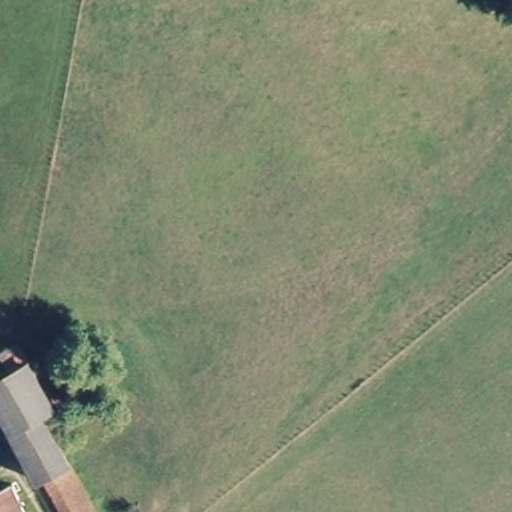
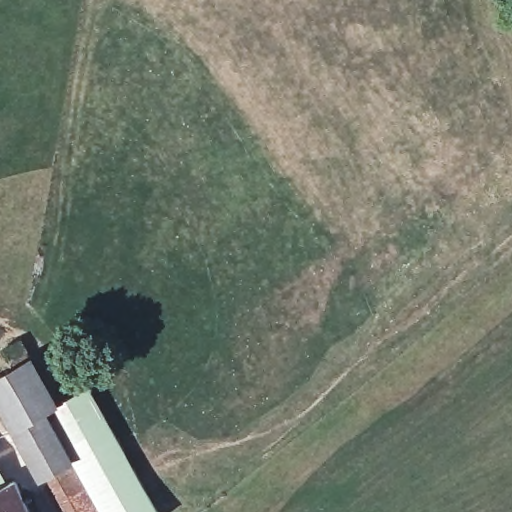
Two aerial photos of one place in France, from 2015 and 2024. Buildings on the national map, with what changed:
unchanged [(36,473),(9,423),(0,405),(0,372),(11,365),(3,349),(19,340),(56,403),(64,425),(54,435),(94,512),(65,512),(41,470),(36,473)]
new [(94,512),(69,463),(54,435),(64,425),(56,405),(90,386),(160,512),(94,512)]
new [(0,487),(0,465),(9,482),(0,487)]
unchanged [(29,512),(0,512),(0,487),(14,480),(29,512)]

